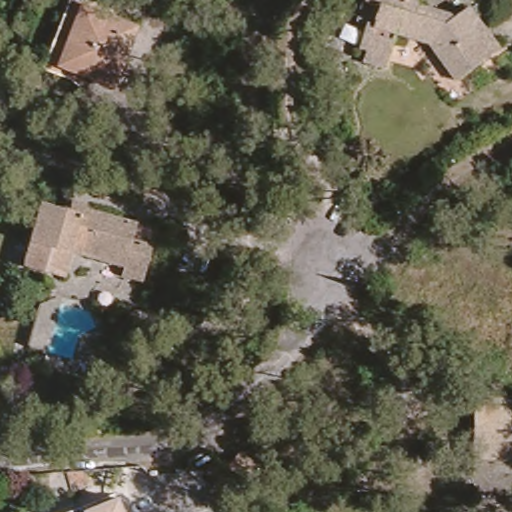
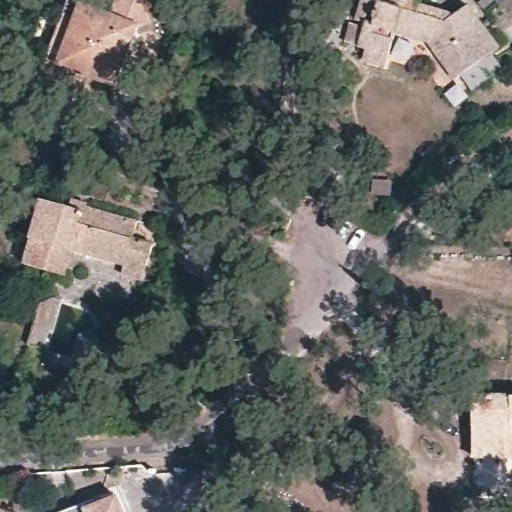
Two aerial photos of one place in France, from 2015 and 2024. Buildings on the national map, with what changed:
unchanged [(67,69),(63,78),(37,66),(63,0),(77,0),(76,4),(55,64),(67,69)]
unchanged [(443,14),(455,5),(470,25),(428,54),(420,44),(383,35),(374,67),(353,60),(355,48),(342,42),(354,0),(407,0),(407,4),(443,14)]
unchanged [(108,84),(67,69),(55,64),(76,4),(131,25),(122,46),(116,63),(108,84)]
unchanged [(470,25),(485,48),(445,77),(428,54),(470,25)]
unchanged [(119,274),(121,265),(70,251),(63,274),(50,270),(23,261),(40,200),(68,208),(71,199),(85,203),(85,205),(135,219),(132,235),(150,242),(143,267),(140,280),(119,274)]
unchanged [(28,343),(39,302),(57,307),(45,349),(28,343)]
unchanged [(497,464),(467,464),(468,402),(512,402),(512,465),(497,464)]
unchanged [(255,464),(245,479),(227,466),(237,452),(255,464)]
unchanged [(83,505),(85,509),(115,499),(121,512),(65,512),(83,505)]

